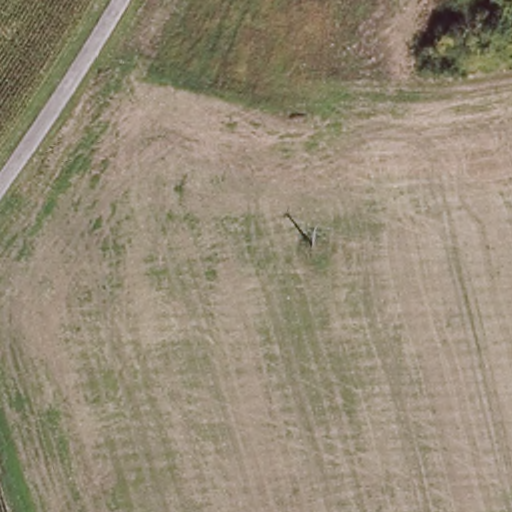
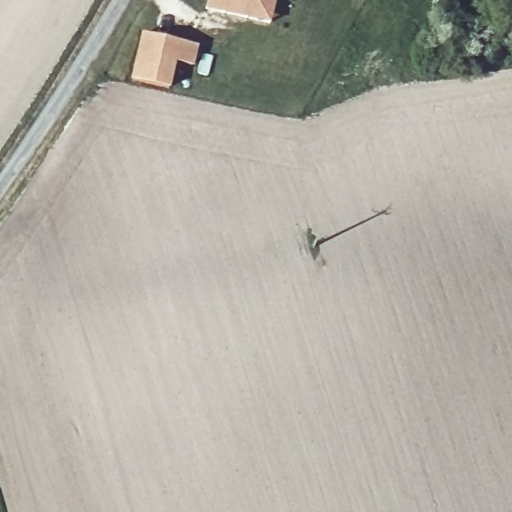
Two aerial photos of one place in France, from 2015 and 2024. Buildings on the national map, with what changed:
new [(270,25),(206,9),(208,0),(276,0),(270,25)]
new [(200,46),(194,67),(177,63),(170,90),(129,80),(140,32),(200,46)]

